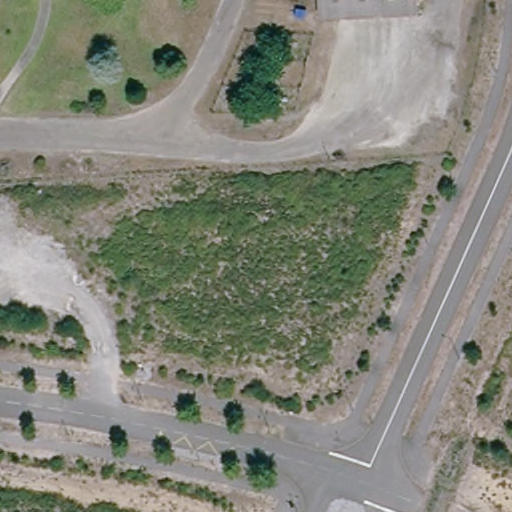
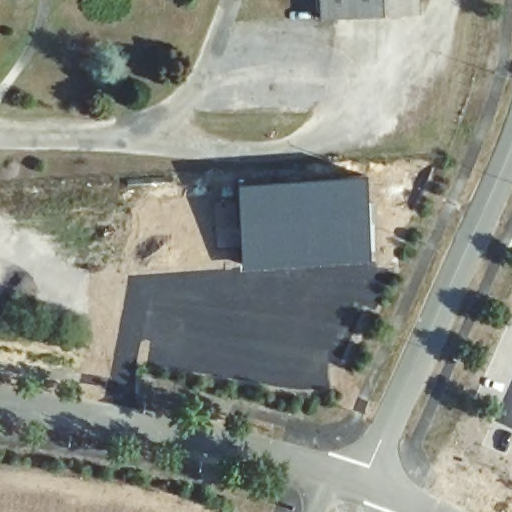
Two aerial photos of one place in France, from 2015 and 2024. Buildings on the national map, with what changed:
unchanged [(322,19),(321,0),(417,0),(418,14),(322,19)]
new [(364,173),(372,263),(240,272),(235,182),(364,173)]

